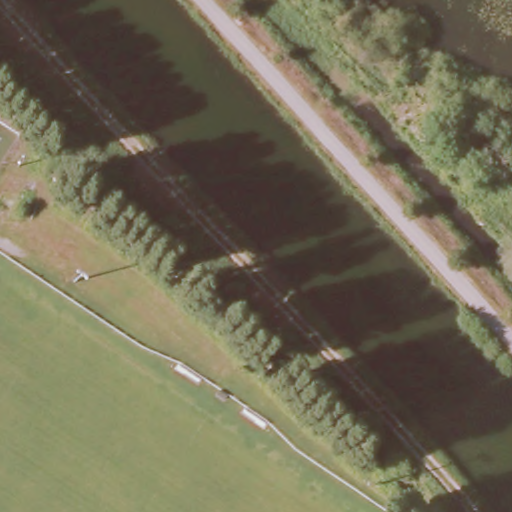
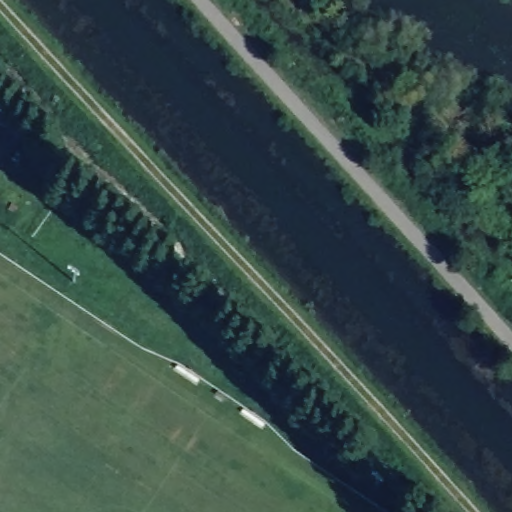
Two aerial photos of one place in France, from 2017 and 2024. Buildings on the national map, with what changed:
unchanged [(469,107),(485,114),(479,137),(460,130),(469,107)]

